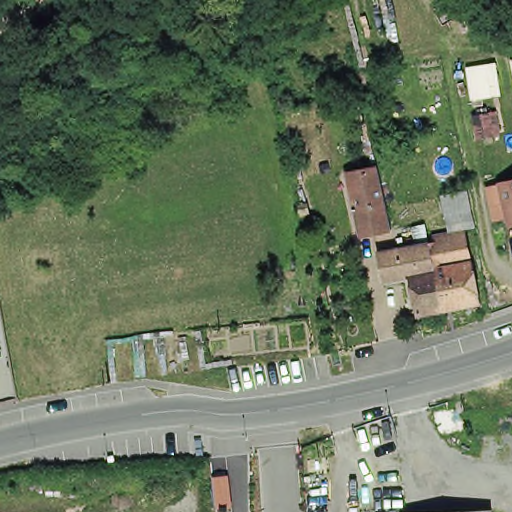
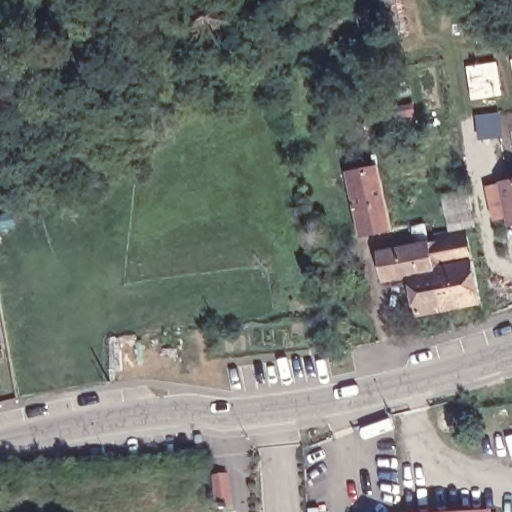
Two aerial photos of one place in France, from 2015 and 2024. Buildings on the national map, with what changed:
unchanged [(490,115),(494,136),(478,137),(475,117),(490,115)]
unchanged [(377,197),(380,207),(385,232),(355,238),(341,176),(372,169),(377,197)]
unchanged [(482,188),(497,185),(497,184),(512,180),(512,225),(505,226),(504,217),(489,220),(482,188)]
unchanged [(448,312),(422,317),(414,278),(388,282),(383,254),(434,246),(456,242),(450,216),(445,197),(472,192),(475,212),(479,228),(470,229),(472,240),(477,263),(485,304),(448,312)]

